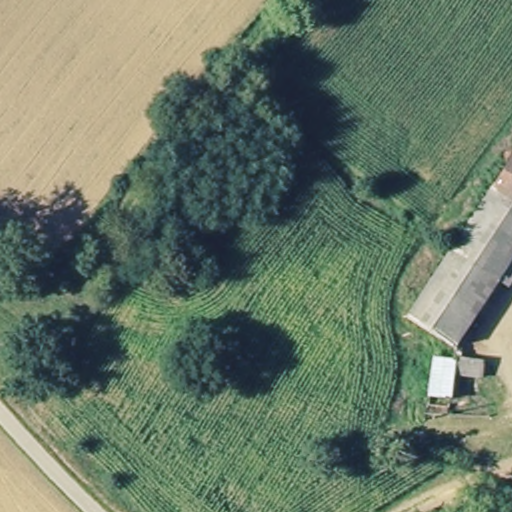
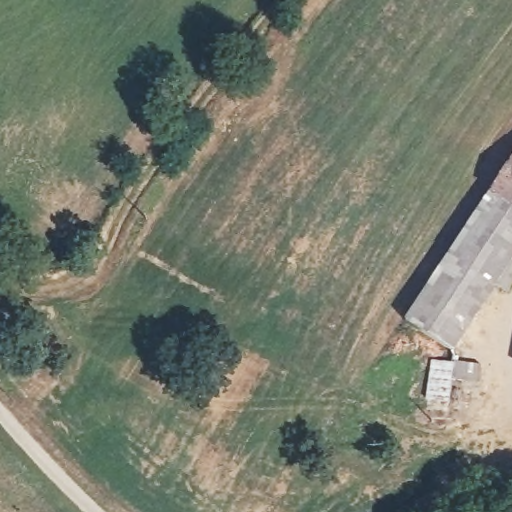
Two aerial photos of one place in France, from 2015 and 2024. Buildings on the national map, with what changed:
unchanged [(512,153),(512,158),(510,157),(512,153)]
unchanged [(504,285),(453,260),(510,157),(512,158),(512,289),(504,285)]
unchanged [(420,322),(453,260),(504,285),(470,346),(447,337),(420,322)]
unchanged [(505,369),(504,405),(483,403),(483,384),(455,382),(454,405),(427,403),(428,363),(505,369)]

